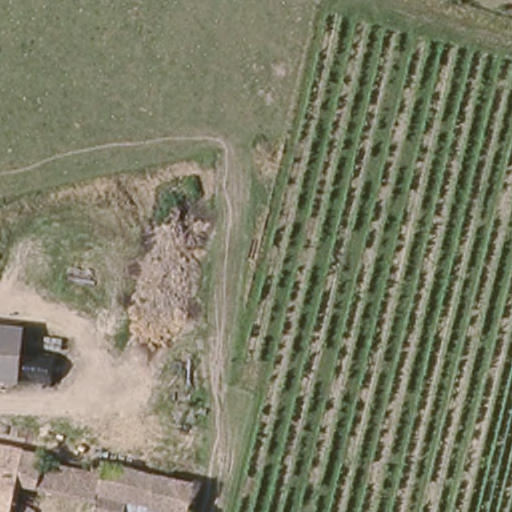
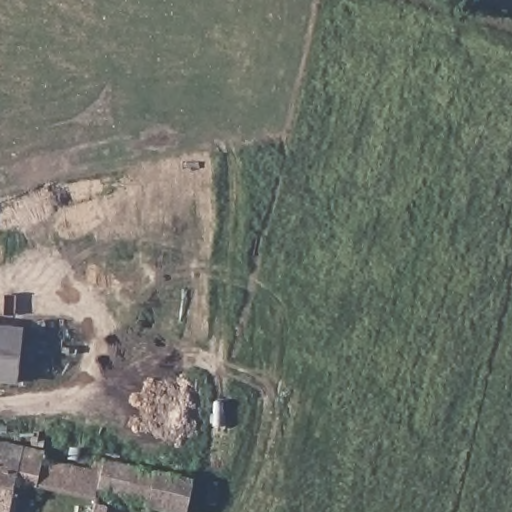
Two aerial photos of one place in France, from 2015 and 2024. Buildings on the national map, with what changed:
unchanged [(0,333),(24,338),(14,386),(0,384),(0,333)]
unchanged [(94,512),(96,504),(15,490),(11,512),(0,512),(0,444),(196,484),(188,512),(94,512)]

